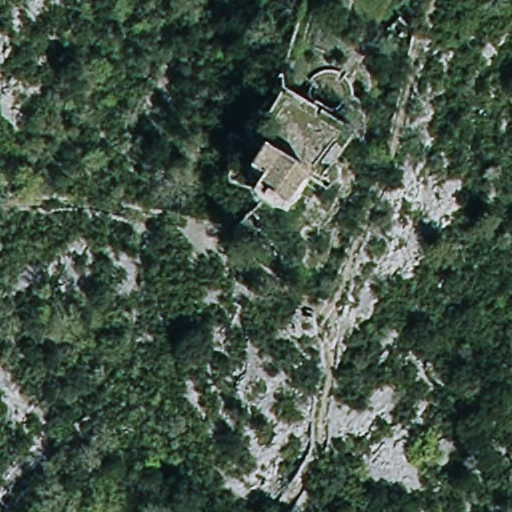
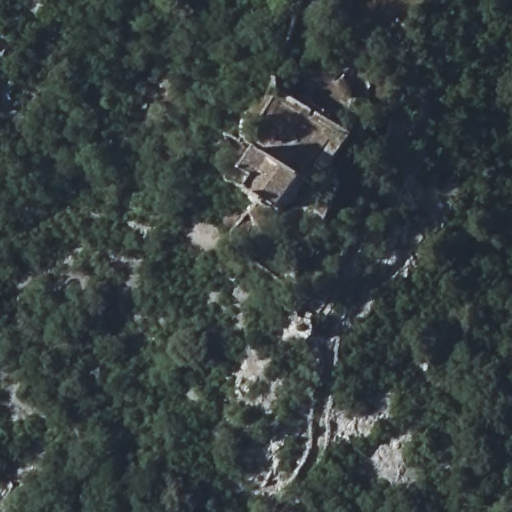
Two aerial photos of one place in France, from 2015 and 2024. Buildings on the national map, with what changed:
unchanged [(256,193),(262,179),(252,171),(267,150),(305,178),(282,212),(256,193)]

